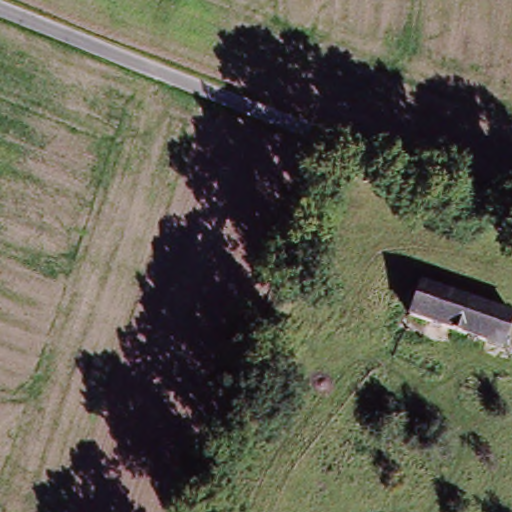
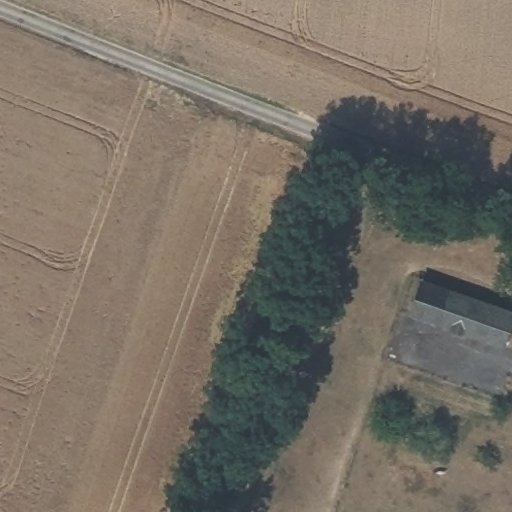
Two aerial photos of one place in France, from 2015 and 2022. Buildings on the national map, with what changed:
unchanged [(508,314),(497,344),(405,311),(416,281),(508,314)]

